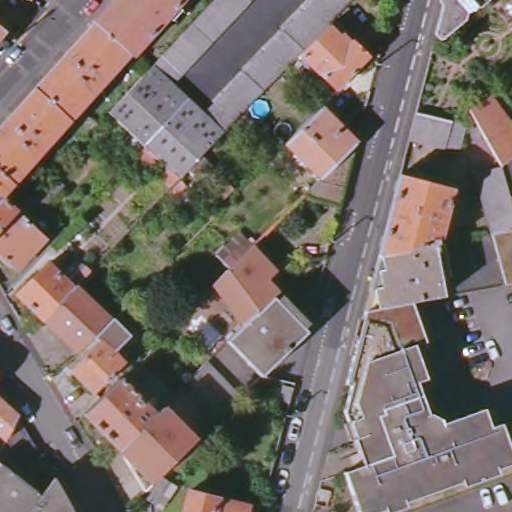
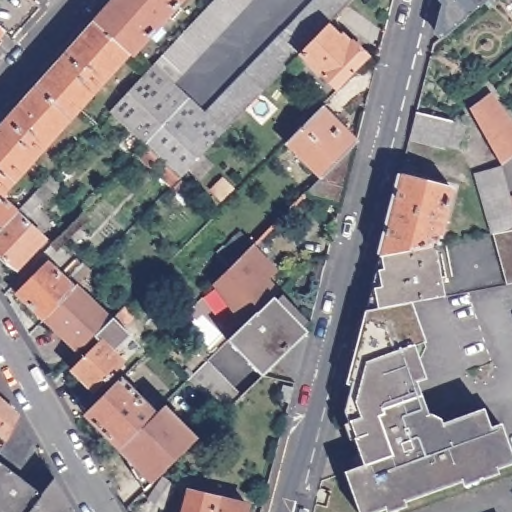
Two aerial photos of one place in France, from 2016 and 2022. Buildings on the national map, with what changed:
unchanged [(30,2),(27,0),(31,0),(30,2)]
unchanged [(132,58),(129,55),(95,25),(117,0),(185,0),(132,58)]
unchanged [(184,75),(183,76),(163,57),(216,0),(253,0),(184,75)]
unchanged [(329,25),(290,65),(289,67),(225,133),(205,114),(315,0),(354,0),(329,25)]
unchanged [(432,47),(436,34),(445,0),(489,0),(442,39),(432,47)]
unchanged [(17,214),(0,233),(0,131),(95,25),(129,55),(2,199),(17,214)]
unchanged [(345,40),(348,37),(370,59),(338,92),(310,63),(297,76),(289,67),(290,65),(329,25),(345,40)]
unchanged [(146,161),(140,168),(134,162),(133,162),(147,149),(110,114),(148,73),(163,57),(183,76),(175,85),(190,100),(205,114),(225,133),(180,179),(172,187),(146,161)]
unchanged [(493,96),(512,124),(512,233),(494,236),(477,174),(505,168),(471,111),(493,96)]
unchanged [(333,120),(357,144),(320,182),(285,146),(323,107),(325,105),(337,116),(333,120)]
unchanged [(461,150),(446,146),(445,150),(409,140),(415,113),(450,122),(466,126),(461,150)]
unchanged [(305,196),(320,182),(357,144),(341,207),(305,196)]
unchanged [(436,246),(382,256),(379,256),(400,176),(450,190),(436,246)]
unchanged [(234,188),(222,200),(211,189),(223,177),(234,188)]
unchanged [(46,210),(40,204),(24,220),(45,240),(17,270),(0,255),(0,233),(17,214),(47,182),(60,194),(46,210)]
unchanged [(494,236),(512,233),(512,285),(507,286),(494,236)]
unchanged [(435,252),(443,298),(413,304),(378,311),(374,289),(381,287),(378,271),(384,269),(382,256),(436,246),(437,251),(435,252)]
unchanged [(249,248),(271,271),(262,280),(273,291),(268,297),(260,305),(255,310),(240,325),(225,305),(210,287),(225,272),(249,248)]
unchanged [(48,264),(65,280),(81,263),(91,272),(84,280),(45,321),(17,295),(48,264)]
unchanged [(94,304),(109,319),(77,352),(45,321),(84,280),(101,297),(94,304)]
unchanged [(291,385),(275,380),(258,376),(223,342),(240,325),(255,310),(260,305),(268,297),(305,330),(273,361),(295,367),(291,385)]
unchanged [(378,311),(413,304),(426,343),(416,346),(427,380),(417,383),(433,428),(485,410),(492,429),(502,425),(512,451),(512,465),(379,512),(359,512),(346,473),(383,460),(380,448),(361,455),(346,410),(352,387),(346,385),(365,314),(378,311)]
unchanged [(115,354),(125,365),(96,394),(71,370),(100,341),(95,338),(108,326),(114,320),(132,336),(115,354)]
unchanged [(223,415),(189,381),(191,379),(208,362),(243,396),(223,415)]
unchanged [(138,432),(121,449),(86,416),(122,380),(138,396),(156,414),(138,432)]
unchanged [(286,404),(285,406),(270,402),(273,386),(290,391),(286,404)]
unchanged [(0,433),(0,399),(18,417),(7,439),(0,433)]
unchanged [(124,455),(125,454),(121,449),(138,432),(156,414),(163,407),(181,427),(196,442),(195,444),(193,445),(175,463),(153,484),(145,492),(124,455)]
unchanged [(0,512),(0,463),(42,495),(30,512),(0,512)]
unchanged [(55,479),(73,512),(30,512),(42,495),(55,479)]
unchanged [(162,510),(148,502),(163,479),(176,487),(162,510)]
unchanged [(185,512),(190,491),(250,507),(248,512),(185,512)]

